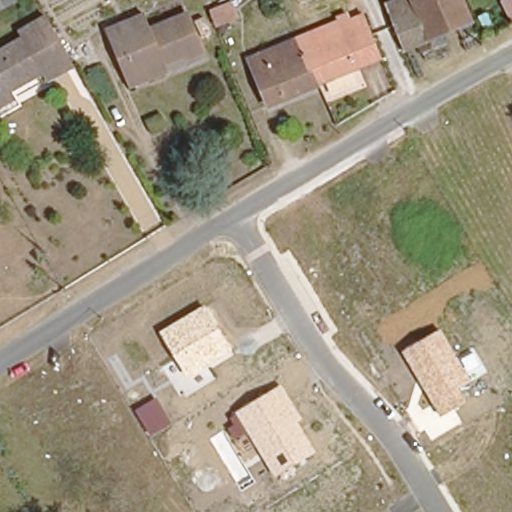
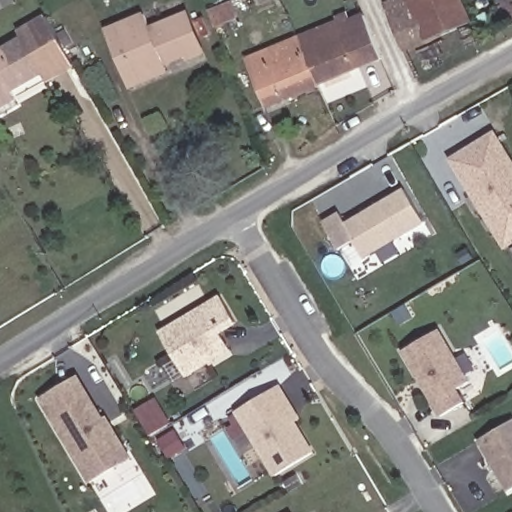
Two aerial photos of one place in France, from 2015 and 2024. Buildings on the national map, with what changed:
new [(0,11),(0,0),(15,0),(17,2),(0,11)]
unchanged [(226,0),(232,0),(237,14),(216,24),(209,7),(226,0)]
unchanged [(300,33),(376,0),(384,0),(405,43),(318,79),(317,76),(300,33)]
unchanged [(405,43),(384,0),(466,0),(472,14),(405,43)]
unchanged [(114,48),(105,27),(142,9),(144,8),(151,20),(176,9),(183,6),(205,52),(187,60),(132,87),(114,48)]
unchanged [(0,49),(21,37),(17,31),(45,16),(55,34),(58,39),(64,49),(66,52),(69,57),(72,62),(44,78),(40,72),(11,89),(16,98),(0,107),(0,49)]
unchanged [(253,55),(263,50),(300,33),(317,76),(318,79),(282,94),(272,99),(253,55)]
new [(494,130),(512,159),(512,245),(503,250),(447,160),(494,130)]
new [(364,260),(343,224),(403,187),(426,223),(364,260)]
unchanged [(232,352),(186,377),(160,333),(206,304),(232,352)]
unchanged [(469,381),(458,387),(466,401),(440,415),(405,351),(442,328),(469,381)]
new [(132,458),(90,482),(39,398),(78,376),(102,418),(107,416),(132,458)]
unchanged [(302,420),(297,423),(315,452),(273,477),(233,414),(281,383),(302,420)]
new [(155,401),(168,422),(151,432),(138,411),(155,401)]
new [(507,492),(477,441),(512,420),(512,489),(507,492)]

